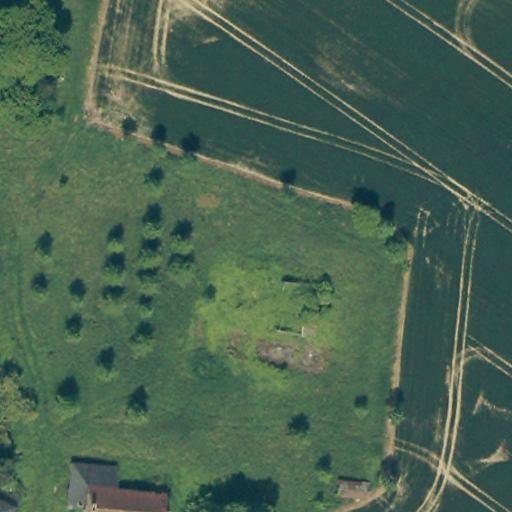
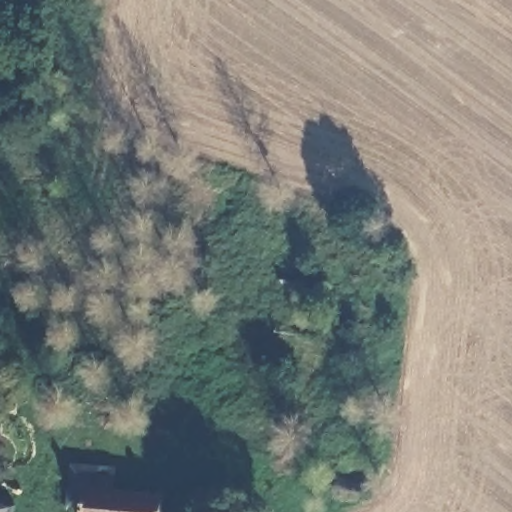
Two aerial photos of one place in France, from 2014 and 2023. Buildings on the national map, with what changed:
unchanged [(146,489),(163,490),(162,512),(81,512),(81,511),(66,510),(69,460),(115,462),(114,486),(146,489)]
unchanged [(0,512),(0,475),(19,485),(4,512),(0,512)]

